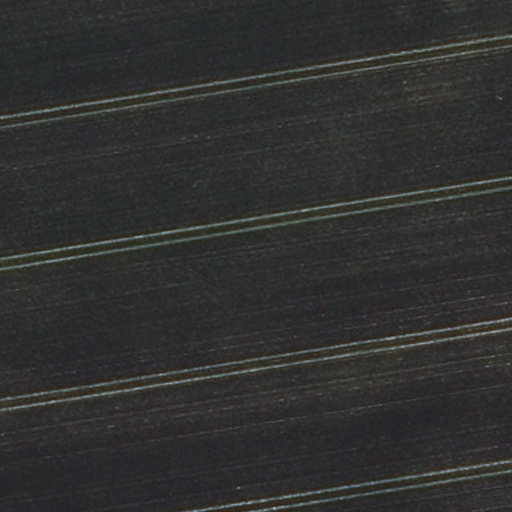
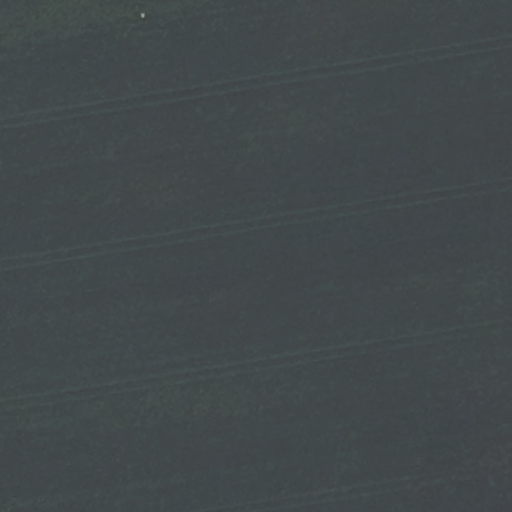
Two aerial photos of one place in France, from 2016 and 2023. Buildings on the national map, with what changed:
[]

